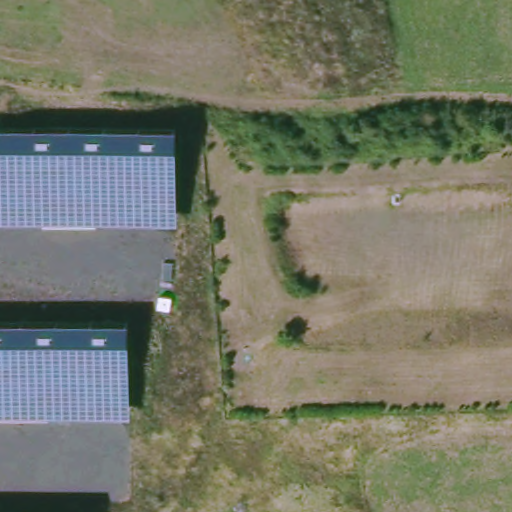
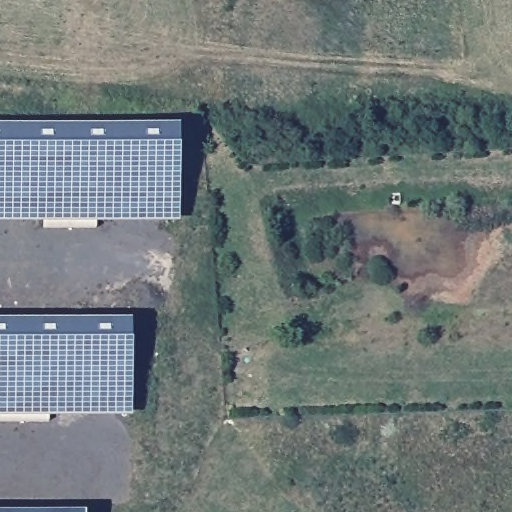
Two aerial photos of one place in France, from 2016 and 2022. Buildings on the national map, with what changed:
unchanged [(178,223),(0,223),(0,128),(178,128),(178,223)]
unchanged [(132,417),(0,417),(0,322),(130,322),(132,417)]

